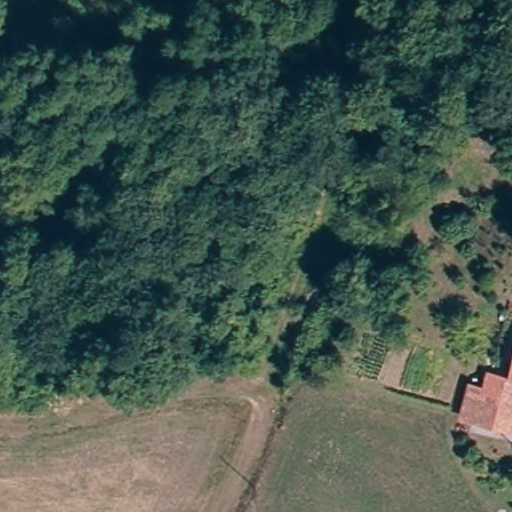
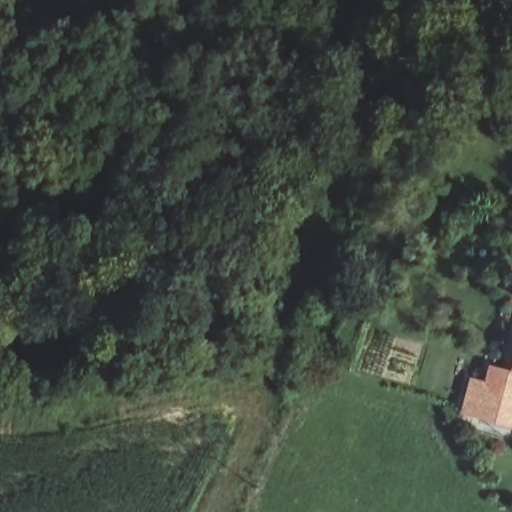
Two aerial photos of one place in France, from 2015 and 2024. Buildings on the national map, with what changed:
unchanged [(368,392),(351,384),(357,373),(382,325),(400,334),(376,378),(368,392)]
unchanged [(476,420),(480,400),(482,392),(491,394),(496,374),(512,377),(512,427),(476,420)]

